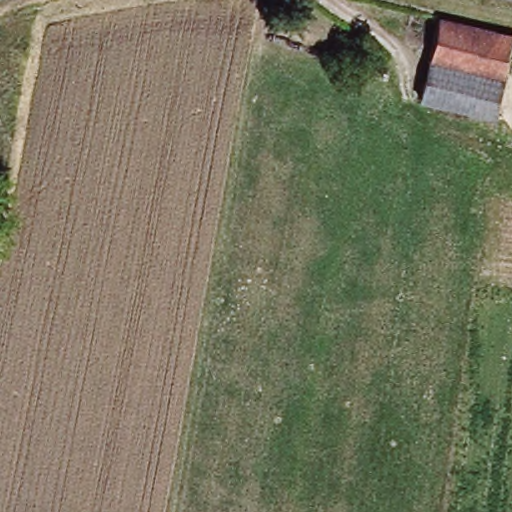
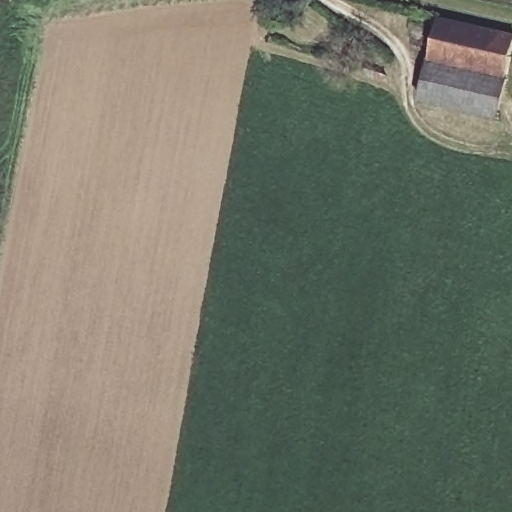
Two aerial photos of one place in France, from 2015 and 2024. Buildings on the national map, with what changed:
unchanged [(426,57),(434,22),(509,39),(501,75),(426,57)]
unchanged [(489,118),(417,102),(422,75),(426,57),(501,75),(489,118)]

